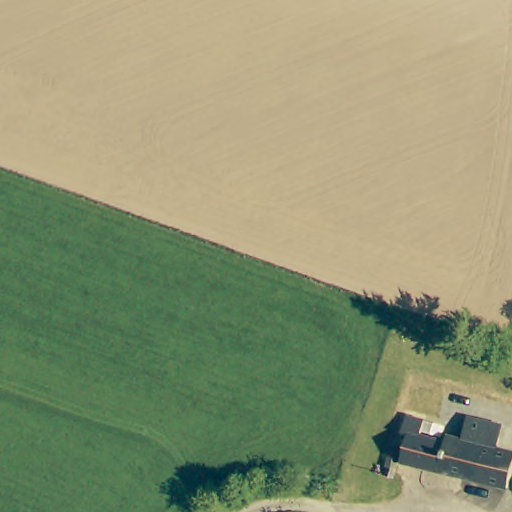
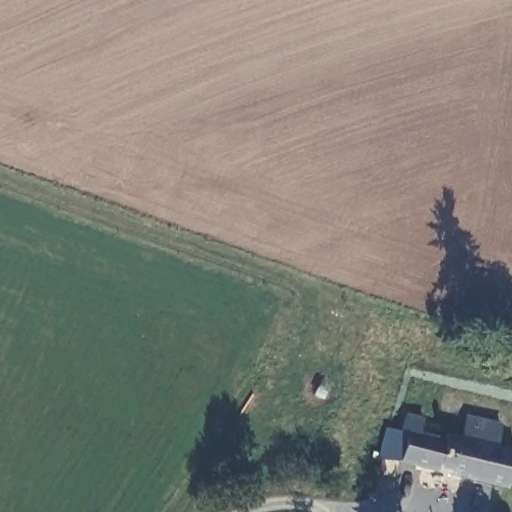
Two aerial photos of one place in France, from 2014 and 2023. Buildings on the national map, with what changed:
unchanged [(403,459),(408,439),(401,438),(407,414),(425,418),(421,433),(448,440),(450,434),(465,438),(470,418),(501,425),(498,446),(512,450),(512,479),(510,486),(403,459)]

